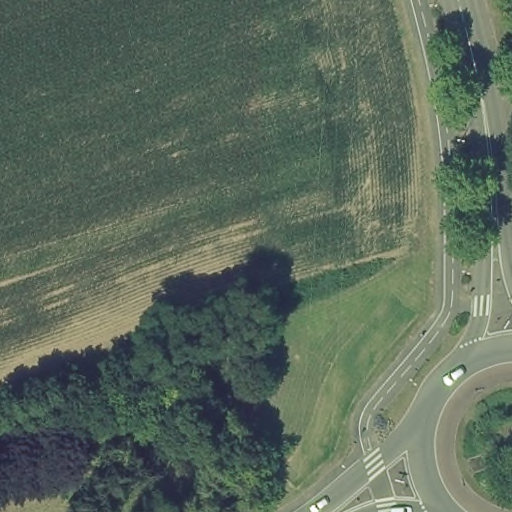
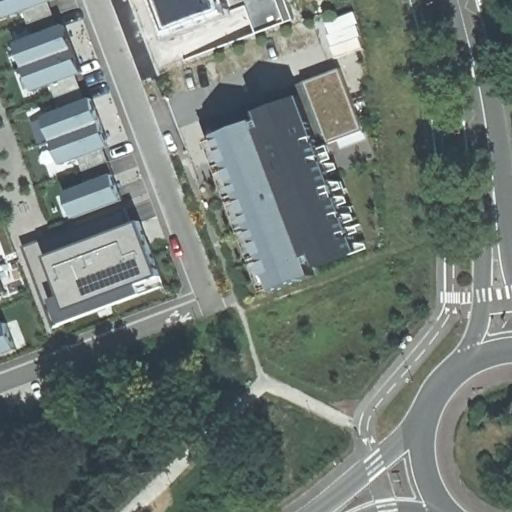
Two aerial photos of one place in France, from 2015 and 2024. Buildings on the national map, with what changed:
new [(60,27),(67,25),(85,72),(77,76),(87,101),(94,99),(112,146),(105,149),(124,200),(75,218),(67,193),(89,184),(79,159),(62,164),(45,117),(62,111),(52,85),(35,91),(17,44),(35,37),(25,12),(7,17),(1,0),(54,0),(50,2),(60,27)]
new [(172,27),(161,0),(217,0),(220,9),(172,27)]
new [(290,7),(293,18),(255,32),(243,0),(282,0),(287,9),(290,7)]
new [(355,9),(366,47),(335,57),(324,20),(355,9)]
new [(265,96),(271,109),(285,103),(281,91),(342,68),(369,140),(344,149),(340,140),(328,144),(325,134),(318,137),(322,146),(335,149),(325,155),(328,163),(338,164),(340,169),(332,172),(337,184),(345,182),(350,194),(341,197),(345,206),(355,207),(356,212),(348,215),(358,242),(368,244),(370,248),(319,267),(317,262),(312,264),(316,276),(267,292),(202,121),(265,96)]
new [(127,207),(133,224),(142,221),(167,286),(55,327),(25,247),(127,207)]
new [(0,294),(0,273),(7,291),(0,294)]
new [(18,348),(0,355),(0,326),(9,323),(18,348)]

